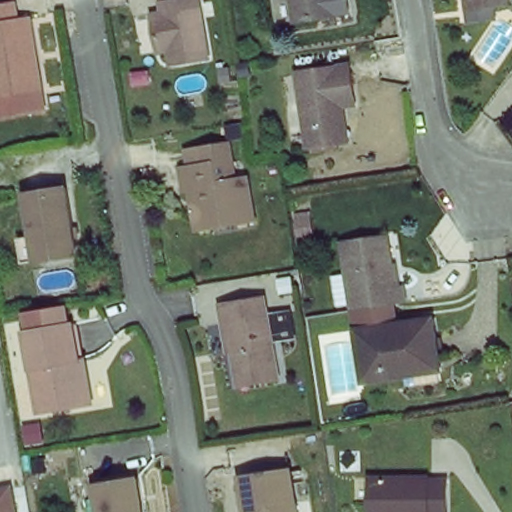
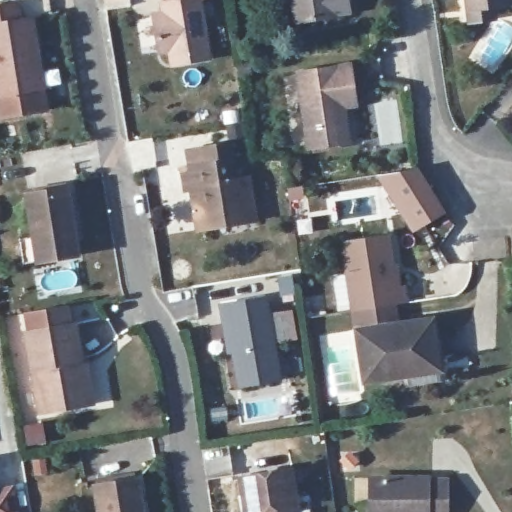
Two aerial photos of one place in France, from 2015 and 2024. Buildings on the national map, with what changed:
unchanged [(173,64),(171,48),(161,50),(158,20),(166,17),(162,0),(199,0),(208,56),(173,64)]
unchanged [(298,22),(294,0),(330,0),(333,16),(298,22)]
unchanged [(469,18),(469,4),(467,4),(466,0),(501,0),(493,1),(493,17),(469,18)]
unchanged [(19,91),(0,93),(0,8),(8,7),(10,21),(21,18),(32,74),(16,76),(19,91)]
unchanged [(336,146),(309,150),(299,73),(350,66),(354,103),(342,105),(348,145),(336,146)]
unchanged [(245,176),(251,230),(199,239),(192,195),(188,195),(185,175),(194,173),(191,156),(230,149),(233,166),(233,172),(235,178),(245,176)]
new [(377,175),(412,170),(419,166),(446,212),(413,232),(377,175)]
unchanged [(137,167),(139,175),(131,177),(130,167),(137,167)]
unchanged [(37,261),(26,201),(64,193),(74,256),(37,261)]
unchanged [(294,233),(291,218),(309,216),(311,230),(294,233)]
unchanged [(340,246),(386,240),(393,293),(399,292),(400,306),(349,314),(340,246)]
unchanged [(238,383),(228,323),(222,324),(221,304),(264,298),(276,377),(238,383)]
unchanged [(86,359),(93,410),(40,416),(27,334),(25,313),(70,305),(72,325),(78,360),(86,359)]
unchanged [(409,375),(366,380),(359,331),(434,320),(440,360),(441,371),(409,375)]
unchanged [(288,477),(294,512),(246,512),(244,484),(288,477)]
unchanged [(421,480),(422,485),(449,484),(450,512),(372,512),(371,483),(421,480)]
unchanged [(16,512),(0,512),(0,488),(11,486),(16,512)]
unchanged [(136,486),(139,512),(100,512),(98,493),(136,486)]

